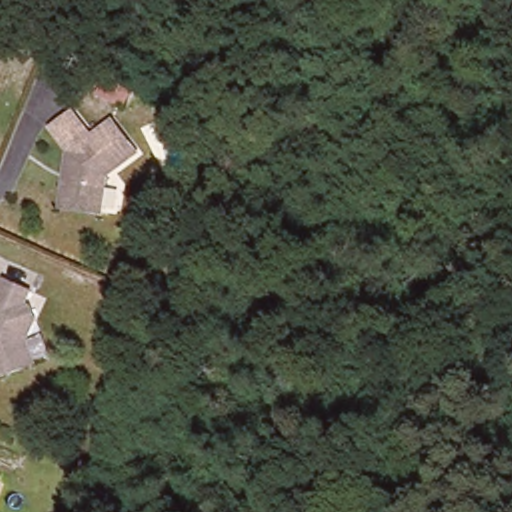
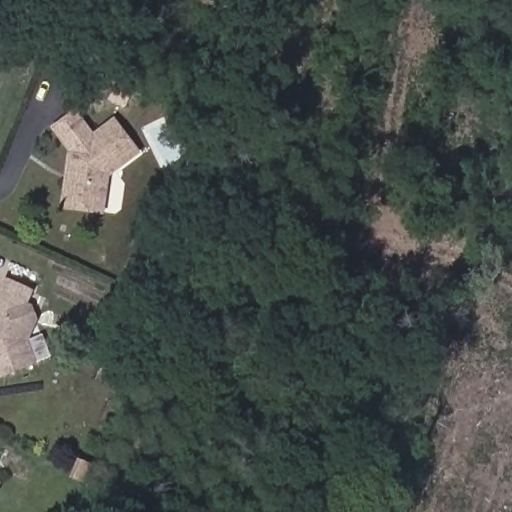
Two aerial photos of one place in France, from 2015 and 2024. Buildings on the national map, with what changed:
unchanged [(108,70),(134,83),(126,99),(101,86),(108,70)]
unchanged [(69,116),(86,141),(105,129),(123,157),(94,176),(90,210),(61,204),(65,161),(70,156),(51,128),(69,116)]
unchanged [(23,301),(28,311),(19,338),(27,362),(0,372),(0,278),(18,284),(15,297),(23,301)]

